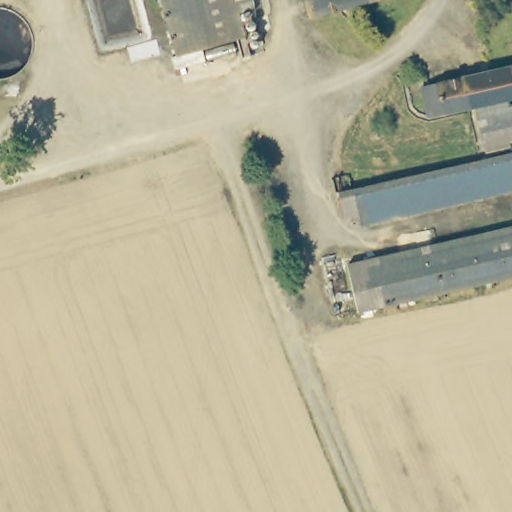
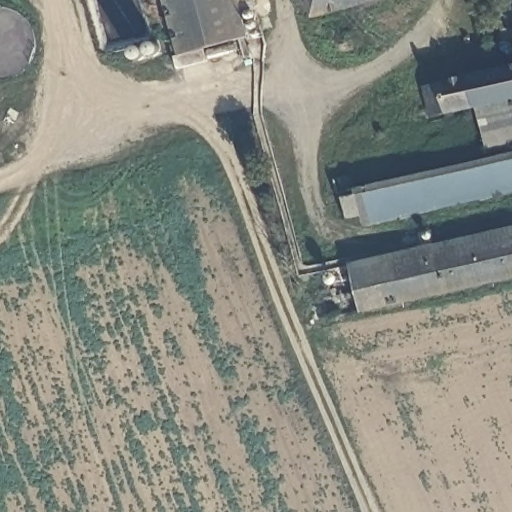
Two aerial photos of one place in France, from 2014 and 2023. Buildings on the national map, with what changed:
unchanged [(181,51),(176,36),(166,0),(246,0),(253,30),(181,51)]
unchanged [(305,0),(361,0),(311,14),(305,0)]
unchanged [(491,151),(477,106),(435,117),(431,106),(426,89),(512,66),(512,146),(491,151)]
unchanged [(342,191),(512,153),(512,191),(362,225),(359,217),(348,219),(340,196),(342,191)]
unchanged [(512,224),(512,274),(357,307),(346,260),(512,224)]

